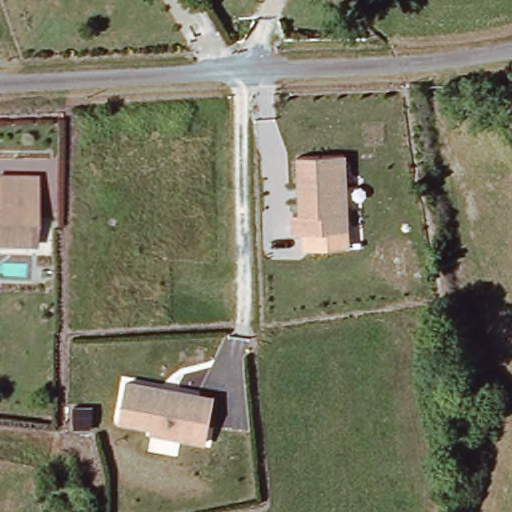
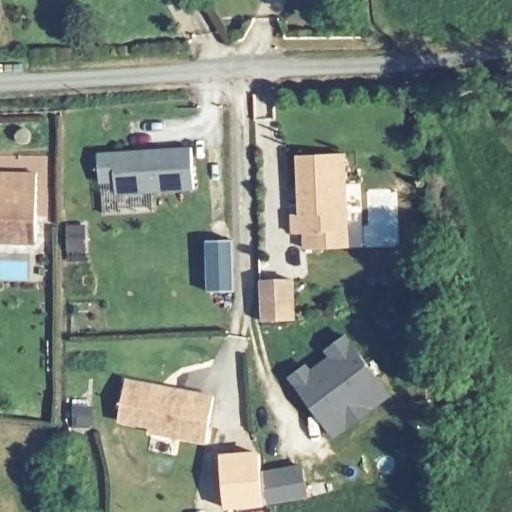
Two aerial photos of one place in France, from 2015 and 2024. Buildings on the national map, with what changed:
new [(191,145),(193,185),(115,190),(114,177),(99,178),(97,150),(191,145)]
unchanged [(296,230),(296,211),(302,210),(301,195),(301,184),(300,151),(347,150),(350,227),(296,230)]
unchanged [(0,174),(34,175),(31,244),(0,242),(0,174)]
new [(233,287),(207,288),(205,236),(231,235),(233,287)]
new [(293,279),(295,319),(264,320),(263,280),(293,279)]
new [(307,367),(314,376),(335,361),(328,352),(347,338),(378,380),(360,393),(358,402),(344,412),(335,412),(322,421),(292,378),(307,367)]
unchanged [(181,433),(153,428),(153,425),(154,423),(120,417),(126,379),(163,385),(174,387),(214,393),(211,414),(210,422),(207,437),(181,433)]
new [(335,412),(344,412),(358,402),(360,393),(378,380),(390,396),(334,437),(322,421),(335,412)]
new [(303,466),(308,495),(265,503),(262,473),(303,466)]

